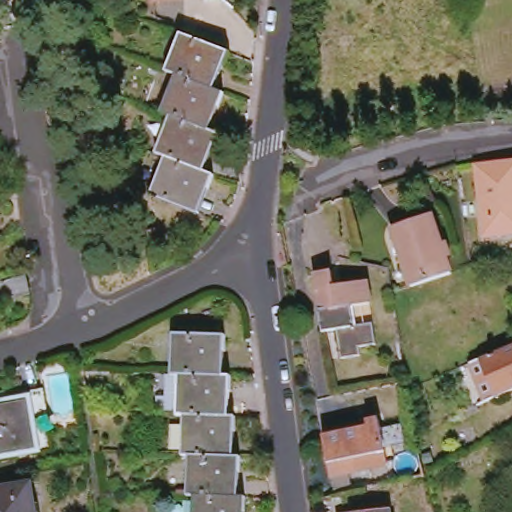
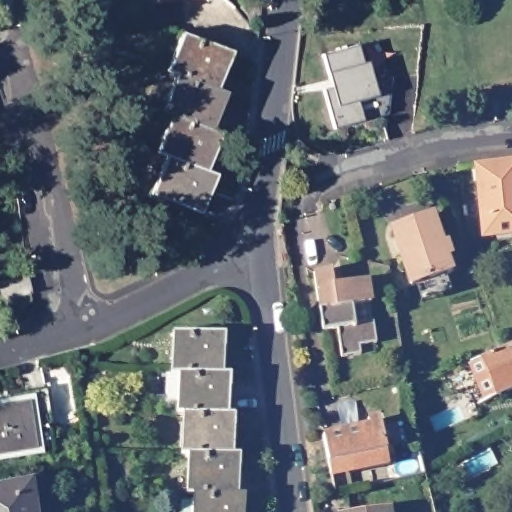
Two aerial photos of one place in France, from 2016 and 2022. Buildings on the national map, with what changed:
unchanged [(182,34),(229,53),(224,64),(216,61),(206,85),(177,74),(167,70),(182,34)]
new [(384,115),(381,116),(334,129),(323,89),(333,86),(331,79),(329,80),(323,55),(362,44),(371,76),(390,79),(384,115)]
unchanged [(177,74),(206,85),(224,93),(218,107),(210,104),(201,126),(172,115),(162,111),(177,74)]
unchanged [(172,115),(201,126),(219,134),(213,147),(205,143),(195,168),(166,156),(156,153),(172,115)]
unchanged [(209,188),(200,185),(190,210),(151,194),(166,156),(195,168),(214,175),(209,188)]
unchanged [(512,233),(484,236),(478,165),(512,162),(512,233)]
unchanged [(433,215),(452,273),(412,286),(393,228),(433,215)]
unchanged [(314,272),(333,270),(335,285),(369,281),(371,304),(352,306),(355,326),(374,324),(376,344),(359,346),(361,355),(343,357),(339,329),(323,331),(314,272)]
unchanged [(28,275),(32,294),(9,300),(0,282),(28,275)]
unchanged [(174,334),(226,336),(224,376),(179,375),(172,375),(174,334)]
unchanged [(488,358),(512,348),(512,392),(503,397),(488,358)]
unchanged [(224,376),(230,376),(228,416),(184,415),(178,415),(179,375),(224,376)]
unchanged [(28,399),(27,392),(45,389),(54,451),(36,454),(35,447),(0,453),(0,403),(28,399)]
unchanged [(228,416),(236,416),(233,456),(189,455),(183,455),(184,415),(228,416)]
unchanged [(369,428),(369,426),(369,425),(370,424),(371,422),(373,421),(374,421),(376,420),(376,421),(378,421),(379,422),(380,422),(381,423),(381,424),(382,426),(389,464),(331,476),(324,437),(369,428)]
unchanged [(233,456),(241,457),(238,496),(194,495),(188,495),(189,455),(233,456)]
unchanged [(31,484),(34,505),(28,506),(28,512),(0,512),(0,489),(31,484)]
unchanged [(238,496),(245,497),(244,512),(194,512),(194,495),(238,496)]
unchanged [(391,508),(391,512),(349,512),(391,508)]

